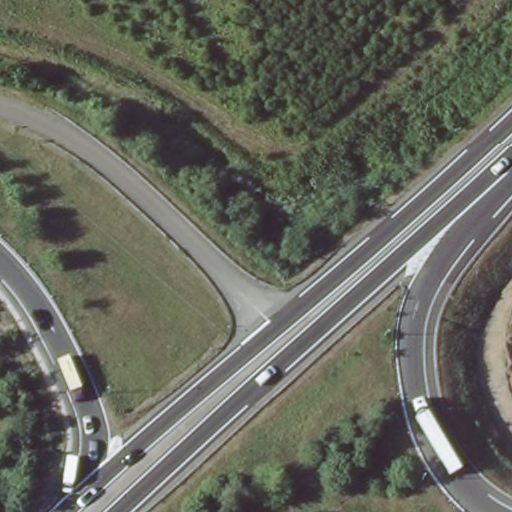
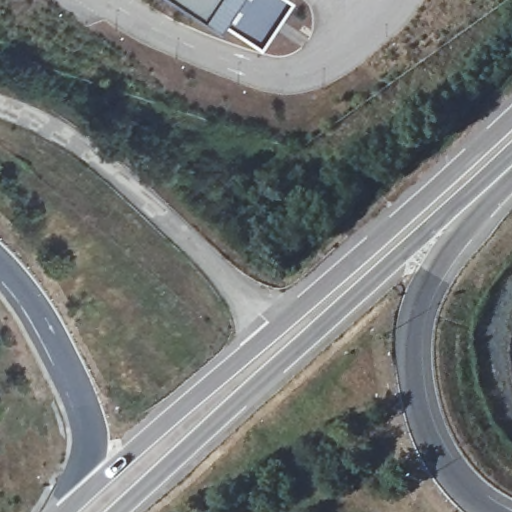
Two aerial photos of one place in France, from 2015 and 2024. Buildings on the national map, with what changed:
new [(214,19),(211,25),(173,0),(285,0),(257,45),(214,19)]

